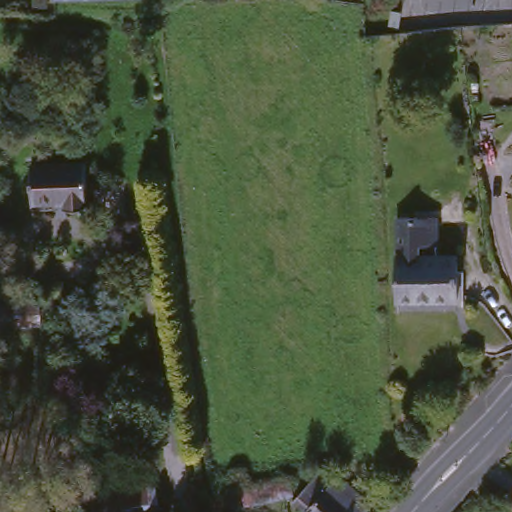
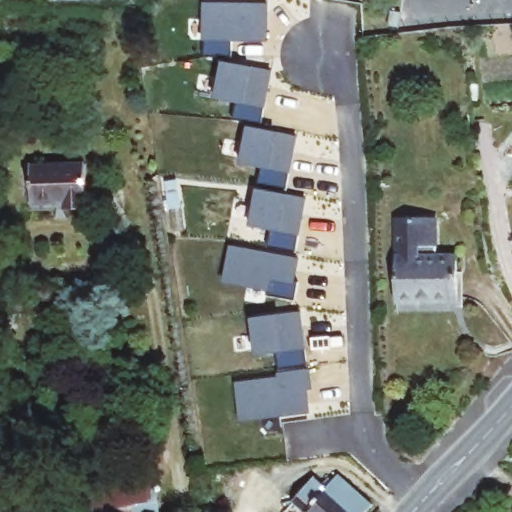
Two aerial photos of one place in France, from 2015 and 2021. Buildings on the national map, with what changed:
unchanged [(49,10),(48,0),(136,0),(136,5),(49,10)]
new [(223,62),(273,71),(263,124),(233,119),(237,101),(217,97),(223,62)]
new [(248,127),(298,136),(288,190),(258,184),(261,166),(242,162),(248,127)]
unchanged [(49,215),(50,206),(21,208),(19,168),(74,165),(77,214),(49,215)]
new [(258,189),(307,198),(297,252),(268,246),(271,229),(251,225),(258,189)]
unchanged [(395,261),(394,226),(436,224),(436,261),(458,260),(459,308),(397,310),(395,261)]
new [(233,245),(298,257),(293,280),(298,281),(295,299),(266,294),(266,288),(227,281),(233,245)]
new [(301,312),(309,366),(279,370),(277,352),(256,355),(251,319),(301,312)]
new [(281,378),(279,370),(309,366),(311,387),(306,388),(310,411),(242,420),(238,383),(281,378)]
unchanged [(323,465),(366,505),(361,512),(297,512),(289,504),(323,465)]
unchanged [(86,488),(156,474),(163,512),(91,512),(86,488)]

